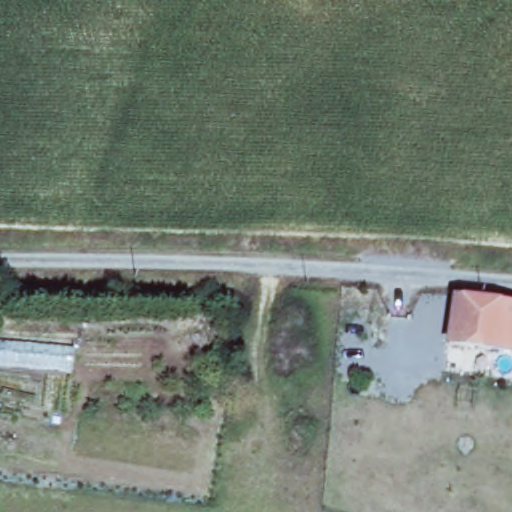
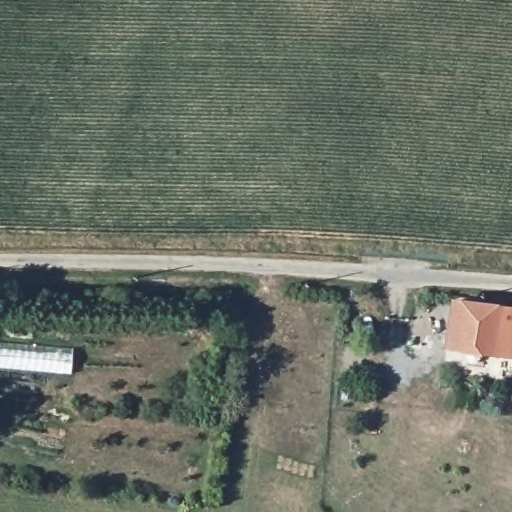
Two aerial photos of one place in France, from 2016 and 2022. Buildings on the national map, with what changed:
unchanged [(447,302),(504,306),(512,307),(512,361),(441,353),(447,302)]

